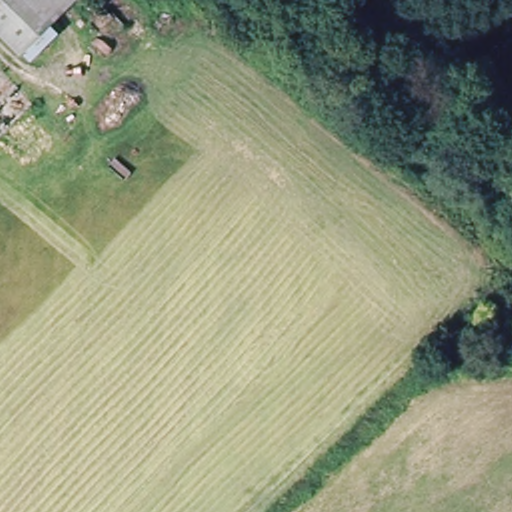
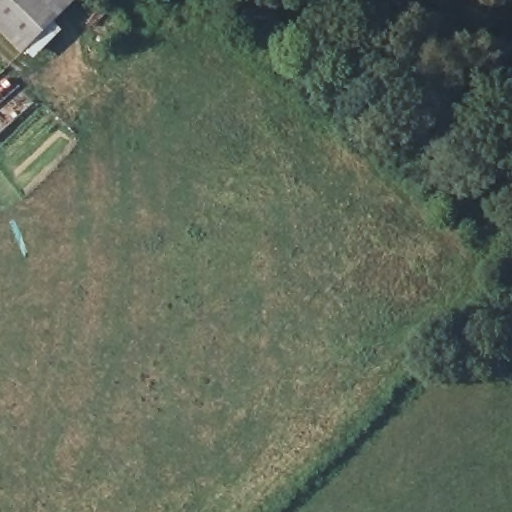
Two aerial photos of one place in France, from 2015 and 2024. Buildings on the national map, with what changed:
unchanged [(36,43),(0,12),(0,0),(73,0),(36,43)]

